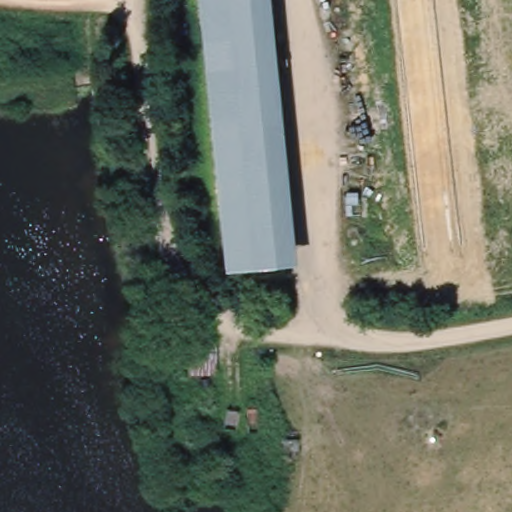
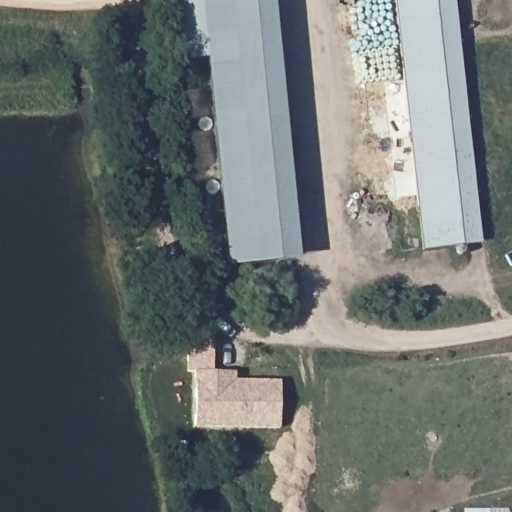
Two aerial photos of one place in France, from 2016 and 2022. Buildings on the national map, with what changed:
unchanged [(274,202),(224,207),(203,0),(254,0),(274,202)]
unchanged [(299,260),(230,267),(224,207),(274,202),(254,0),(274,0),(299,260)]
new [(461,245),(423,249),(396,0),(434,0),(461,245)]
unchanged [(185,352),(192,352),(192,335),(210,335),(210,373),(185,373),(185,352)]
new [(210,373),(210,370),(236,371),(236,380),(280,380),(280,426),(194,425),(194,373),(210,373)]

